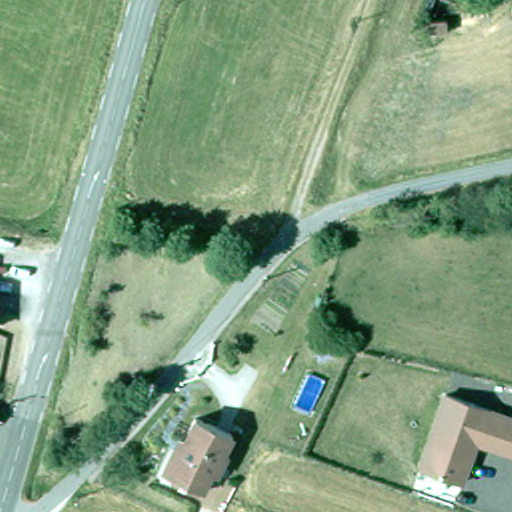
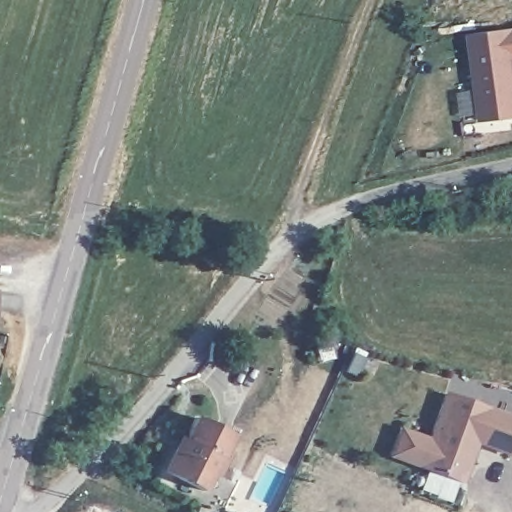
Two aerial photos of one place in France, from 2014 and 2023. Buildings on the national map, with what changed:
new [(512,117),(481,121),(469,34),(512,28),(512,117)]
unchanged [(512,454),(481,443),(466,485),(414,470),(442,394),(512,413),(512,454)]
unchanged [(234,433),(226,451),(230,453),(221,473),(215,471),(206,490),(167,472),(178,447),(182,438),(186,440),(196,416),(234,433)]
new [(427,437),(414,470),(387,460),(399,427),(427,437)]

